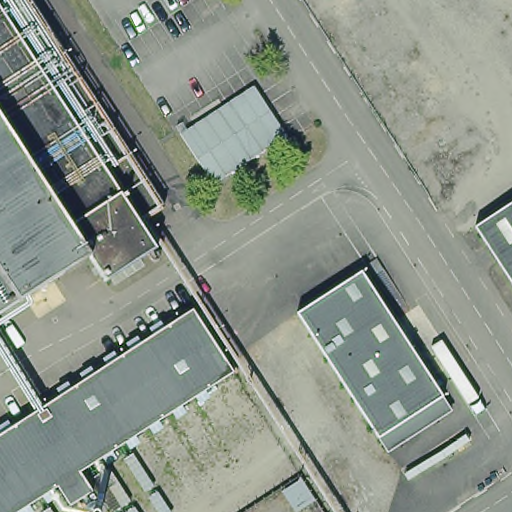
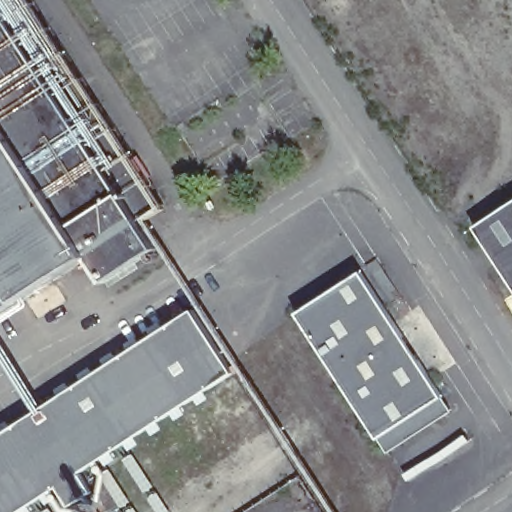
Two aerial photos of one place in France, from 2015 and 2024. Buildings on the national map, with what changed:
unchanged [(158,213),(139,229),(159,259),(102,291),(80,261),(0,312),(0,0),(25,0),(158,213)]
demolished [(288,139),(212,193),(179,130),(254,83),(288,139)]
unchanged [(512,200),(512,289),(472,226),(512,200)]
unchanged [(293,313),(356,271),(435,388),(373,441),(293,313)]
unchanged [(190,303),(232,367),(10,512),(0,512),(0,428),(190,303)]

